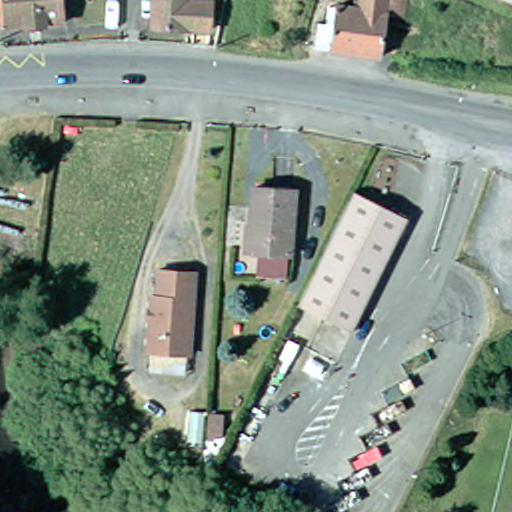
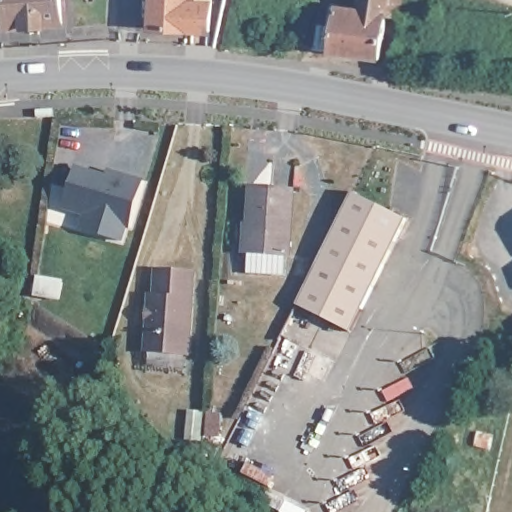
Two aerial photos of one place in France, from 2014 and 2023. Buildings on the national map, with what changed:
unchanged [(60,21),(0,26),(0,0),(59,0),(60,21)]
unchanged [(146,0),(187,0),(205,1),(204,30),(145,27),(146,0)]
unchanged [(313,43),(316,18),(332,20),(335,0),(357,2),(358,0),(403,0),(402,9),(385,7),(379,51),(313,43)]
new [(65,208),(77,165),(108,172),(109,168),(144,178),(125,242),(80,230),(84,215),(65,208)]
unchanged [(287,183),(282,248),(241,246),(245,181),(287,183)]
unchanged [(292,303),(315,255),(347,189),(402,216),(346,330),(292,303)]
unchanged [(185,348),(142,346),(147,290),(152,291),(155,264),(191,267),(185,348)]
unchanged [(190,414),(205,415),(202,445),(187,444),(190,414)]
unchanged [(226,442),(212,441),(214,418),(227,419),(226,442)]

